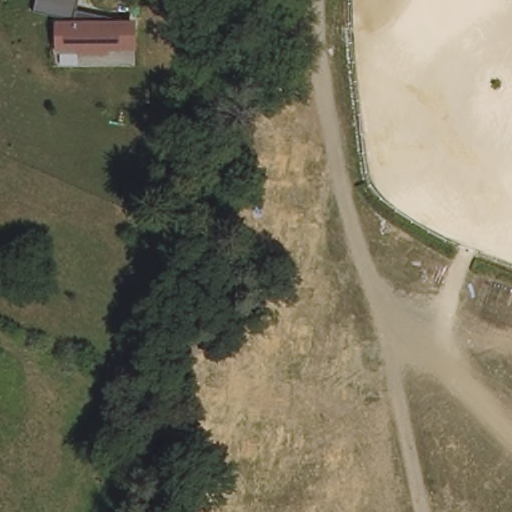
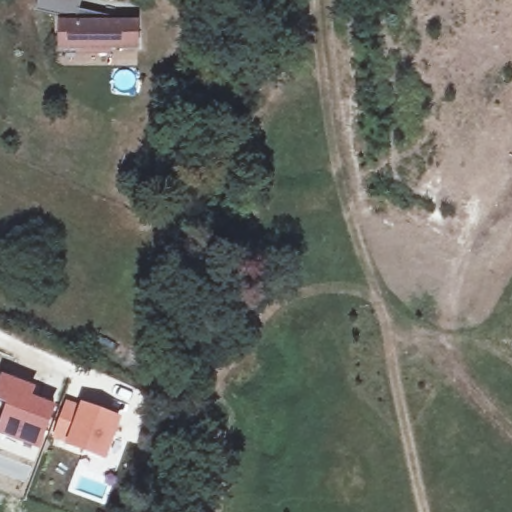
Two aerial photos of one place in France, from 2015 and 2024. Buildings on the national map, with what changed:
unchanged [(80,11),(139,12),(141,51),(60,50),(61,18),(35,13),(38,0),(80,0),(80,11)]
new [(8,407),(0,404),(0,388),(4,378),(36,390),(35,400),(56,408),(41,452),(0,435),(0,430),(8,407)]
new [(58,438),(69,406),(83,413),(85,409),(120,421),(105,458),(72,445),(58,438)]

